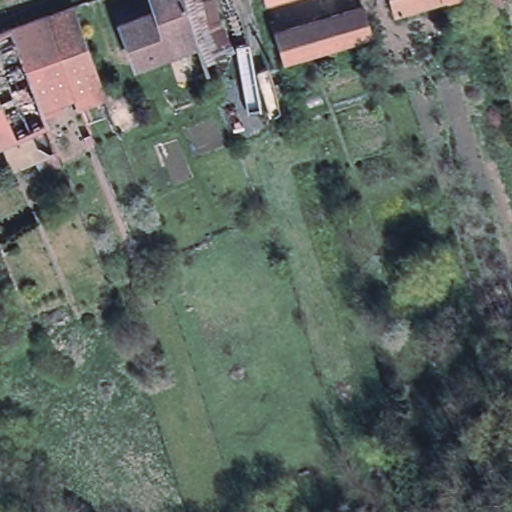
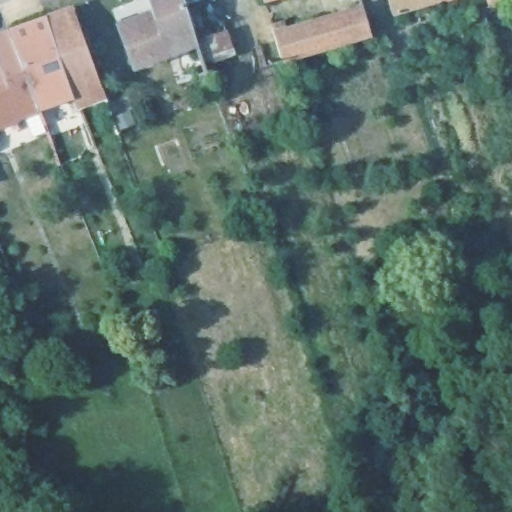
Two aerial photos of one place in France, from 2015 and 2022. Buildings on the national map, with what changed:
unchanged [(168,55),(153,12),(149,0),(182,0),(196,42),(168,55)]
unchanged [(202,62),(196,42),(182,0),(215,0),(232,52),(202,62)]
unchanged [(281,55),(271,20),(285,16),(287,24),(348,6),(346,0),(363,0),(371,27),(281,55)]
unchanged [(407,14),(396,17),(395,9),(392,9),(390,0),(422,0),(405,5),(407,14)]
unchanged [(71,2),(103,91),(101,92),(76,102),(72,91),(74,90),(46,12),(71,2)]
unchanged [(46,12),(74,90),(72,91),(41,104),(38,106),(10,25),(46,12)]
unchanged [(153,12),(168,55),(133,67),(117,25),(153,12)]
unchanged [(10,25),(38,106),(41,104),(46,119),(13,132),(0,103),(0,28),(10,25)]
unchanged [(13,132),(0,138),(0,103),(13,132)]
unchanged [(88,134),(92,144),(86,146),(82,136),(88,134)]
unchanged [(56,151),(61,166),(40,172),(35,159),(56,151)]

